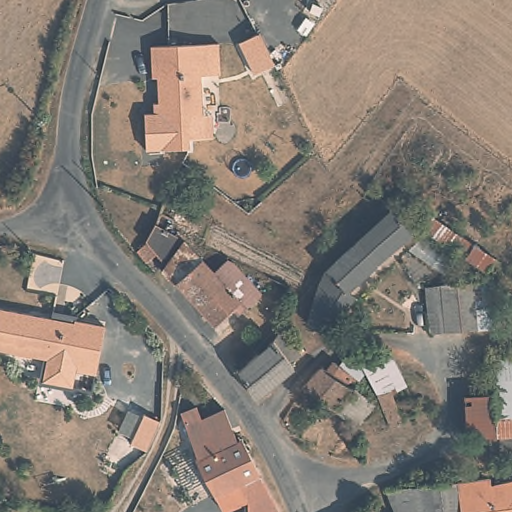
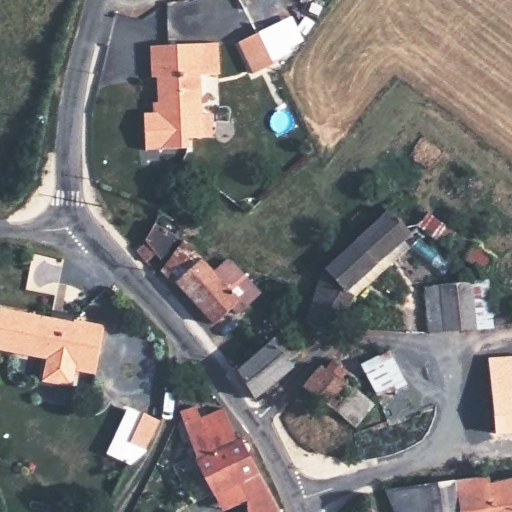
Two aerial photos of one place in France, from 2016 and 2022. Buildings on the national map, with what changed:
unchanged [(261,39),(272,64),(252,73),(247,61),(238,41),(258,31),(261,39)]
unchanged [(147,115),(161,114),(160,78),(154,79),(152,46),(213,43),(213,58),(205,59),(206,75),(203,75),(205,114),(190,115),(192,148),(164,150),(149,151),(149,143),(147,115)]
unchanged [(27,118),(38,121),(34,132),(25,128),(27,118)]
unchanged [(170,203),(166,219),(174,226),(166,243),(156,259),(155,259),(157,262),(149,271),(130,253),(140,244),(148,232),(152,219),(153,211),(158,197),(170,203)]
unchanged [(491,259),(481,278),(417,229),(428,214),(491,259)]
unchanged [(385,219),(390,222),(404,238),(374,264),(357,244),(385,219)]
unchanged [(222,260),(230,264),(256,294),(234,316),(227,309),(207,324),(172,287),(154,271),(178,243),(197,259),(210,270),(222,260)]
unchanged [(343,293),(342,294),(324,272),(326,271),(357,244),(374,264),(343,293)]
unchanged [(324,272),(342,294),(326,340),(303,324),(320,277),(324,272)]
unchanged [(471,283),(486,282),(490,326),(474,328),(432,332),(428,286),(471,283)]
unchanged [(46,369),(48,359),(37,357),(0,349),(0,314),(1,309),(62,320),(75,323),(79,324),(80,320),(105,325),(99,358),(96,374),(77,370),(74,387),(44,381),(46,369)]
unchanged [(294,369),(259,399),(254,399),(241,376),(249,368),(241,358),(259,341),(268,349),(282,332),(299,358),(294,369)]
unchanged [(494,441),(490,404),(485,364),(512,359),(512,440),(494,441)]
unchanged [(352,396),(368,408),(353,429),(299,390),(314,371),(321,375),(330,368),(339,375),(347,365),(356,369),(375,362),(394,417),(381,421),(376,400),(372,397),(371,391),(366,381),(359,373),(350,383),(358,388),(352,396)]
unchanged [(221,494),(217,495),(196,459),(196,453),(181,412),(196,407),(203,417),(226,410),(240,439),(244,438),(262,472),(282,508),(281,512),(260,512),(255,502),(235,512),(230,512),(221,494)]
unchanged [(154,424),(146,444),(128,438),(139,408),(157,414),(154,424)]
unchanged [(359,449),(376,441),(382,453),(364,459),(359,449)]
unchanged [(486,475),(488,482),(512,477),(512,512),(391,512),(382,489),(486,475)]
unchanged [(365,505),(369,512),(353,512),(365,505)]

